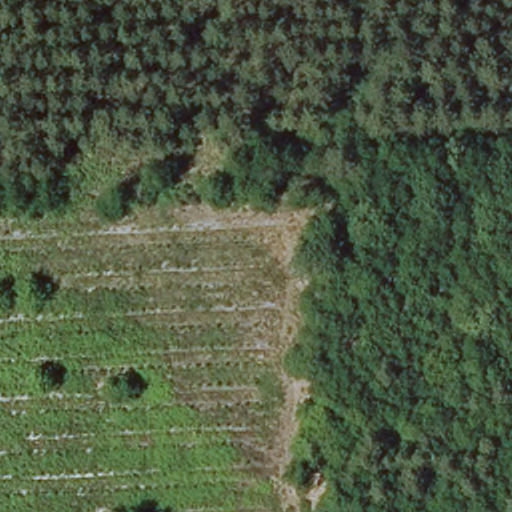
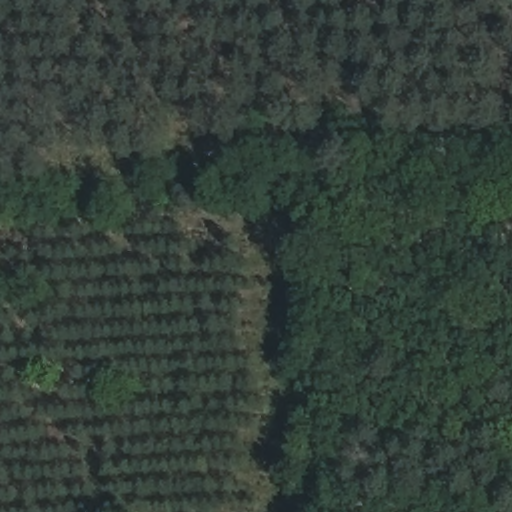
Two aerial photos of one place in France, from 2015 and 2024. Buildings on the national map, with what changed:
[]

